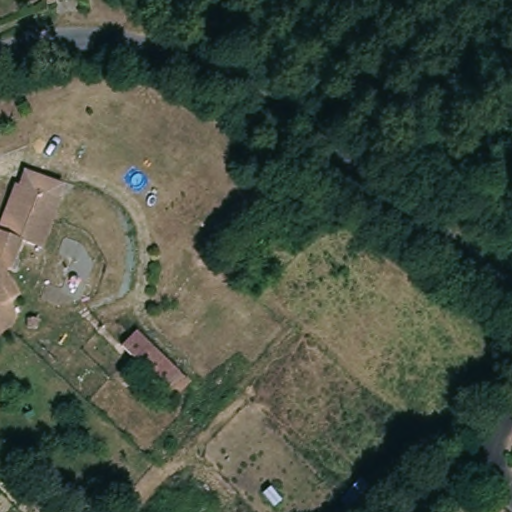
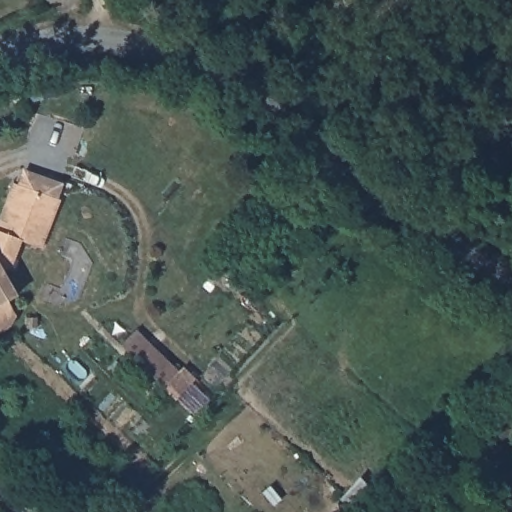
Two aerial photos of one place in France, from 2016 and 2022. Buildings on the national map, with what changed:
unchanged [(24,169),(27,170),(61,182),(58,192),(56,196),(62,199),(44,245),(23,238),(10,232),(0,228),(0,222),(14,183),(19,184),(24,169)]
unchanged [(23,238),(13,263),(5,267),(17,292),(12,295),(19,313),(10,324),(9,326),(0,336),(0,228),(10,232),(23,238)]
unchanged [(136,333),(190,383),(177,398),(121,347),(136,333)]

